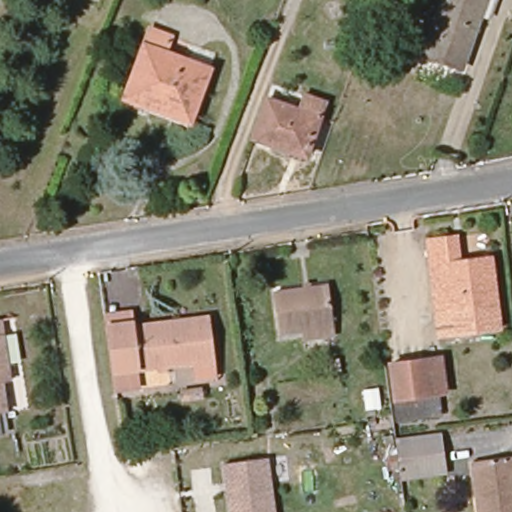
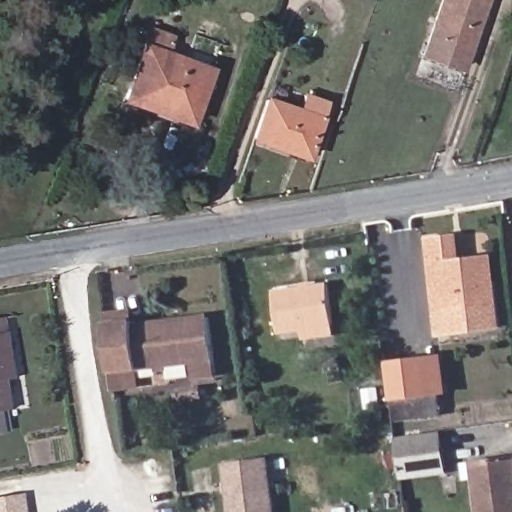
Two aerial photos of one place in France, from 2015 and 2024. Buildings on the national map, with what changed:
unchanged [(433,63),(455,0),(489,0),(488,1),(496,4),(480,51),(471,76),(457,71),(433,63)]
unchanged [(147,104),(126,96),(153,29),(171,34),(165,51),(213,66),(197,111),(194,120),(147,104)]
unchanged [(269,99),(297,109),(303,93),(327,101),(308,156),(254,138),(269,99)]
unchanged [(447,234),(461,232),(464,259),(495,255),(504,320),(505,324),(444,332),(443,327),(430,236),(447,234)]
unchanged [(306,336),(306,329),(281,333),(277,290),(332,282),(338,325),(339,333),(306,336)]
unchanged [(133,388),(115,389),(106,321),(104,310),(136,306),(137,320),(137,324),(213,313),(219,363),(219,371),(196,373),(196,364),(197,358),(141,365),(143,387),(133,388)]
unchanged [(0,431),(0,317),(5,316),(14,380),(6,382),(11,411),(4,412),(7,431),(0,431)]
unchanged [(442,414),(397,420),(389,363),(435,357),(442,414)]
unchanged [(438,433),(443,471),(398,477),(393,438),(438,433)]
unchanged [(272,512),(229,512),(221,459),(263,453),(272,512)]
unchanged [(473,461),(512,456),(512,512),(479,512),(473,461)]
new [(23,512),(0,512),(0,497),(21,494),(23,512)]

